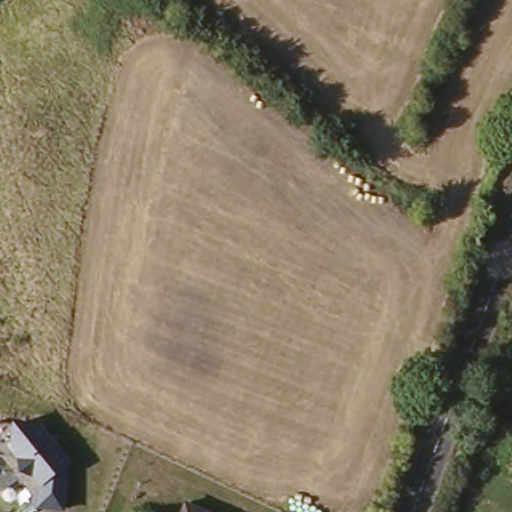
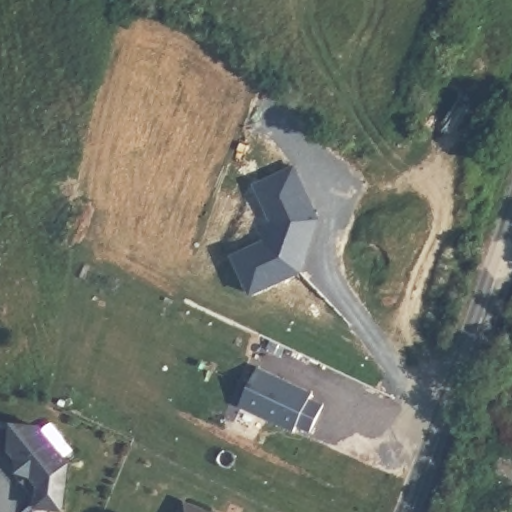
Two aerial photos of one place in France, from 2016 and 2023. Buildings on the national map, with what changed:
new [(270,238),(277,220),(260,183),(297,165),(321,217),(309,252),(305,250),(300,263),(303,269),(254,291),(237,253),(270,238)]
new [(314,393),(311,399),(326,405),(313,433),(299,427),(295,433),(241,407),(258,368),(314,393)]
unchanged [(67,462),(67,484),(66,507),(40,505),(41,479),(19,455),(0,452),(0,424),(45,429),(67,462)]
unchanged [(207,512),(187,512),(191,504),(207,512)]

